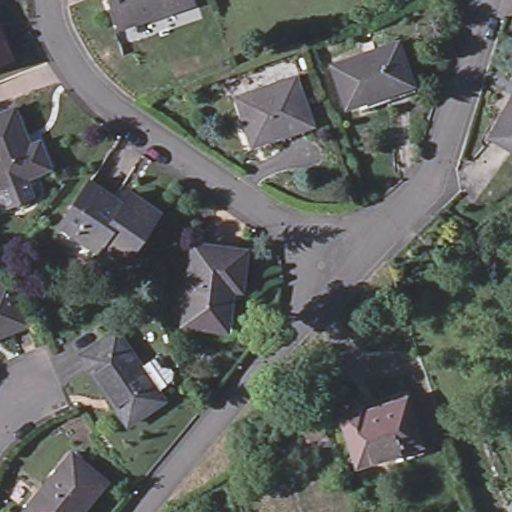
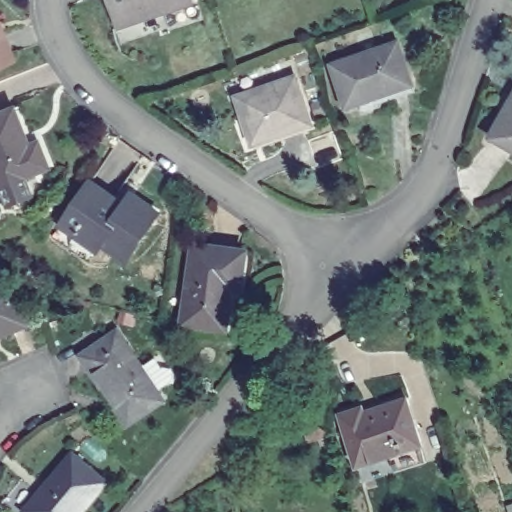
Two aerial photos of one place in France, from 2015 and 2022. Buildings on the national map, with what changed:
unchanged [(109,0),(190,0),(193,8),(120,32),(109,0)]
unchanged [(0,73),(0,30),(15,67),(0,73)]
unchanged [(414,85),(347,108),(332,65),(399,42),(414,85)]
unchanged [(238,97),(296,77),(312,124),(254,144),(238,97)]
unchanged [(493,132),(512,98),(512,142),(493,132)]
unchanged [(7,202),(2,199),(0,196),(0,190),(1,187),(0,184),(0,114),(15,108),(30,145),(40,142),(50,168),(26,178),(33,196),(9,205),(7,202)]
unchanged [(160,213),(127,261),(102,244),(98,251),(76,235),(81,229),(66,219),(91,182),(125,204),(132,194),(160,213)]
unchanged [(185,324),(195,245),(246,252),(241,289),(232,288),(227,329),(185,324)]
unchanged [(27,325),(0,336),(0,286),(11,282),(27,325)]
unchanged [(81,357),(117,332),(165,400),(129,424),(81,357)]
unchanged [(392,464),(389,457),(358,467),(341,414),(362,407),(365,413),(407,398),(422,445),(425,454),(392,464)]
unchanged [(73,454),(107,482),(82,512),(26,512),(73,454)]
unchanged [(509,507),(512,506),(512,512),(510,512),(509,507)]

